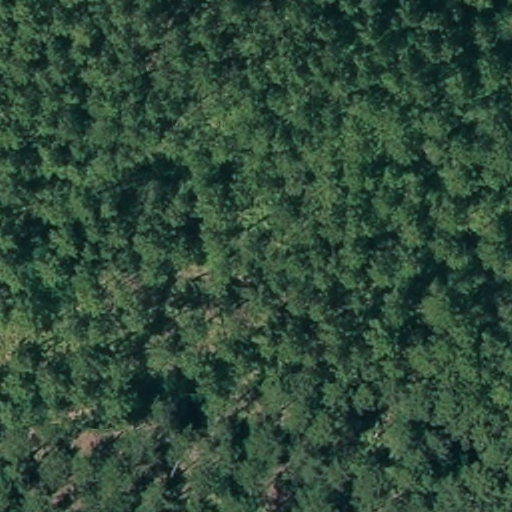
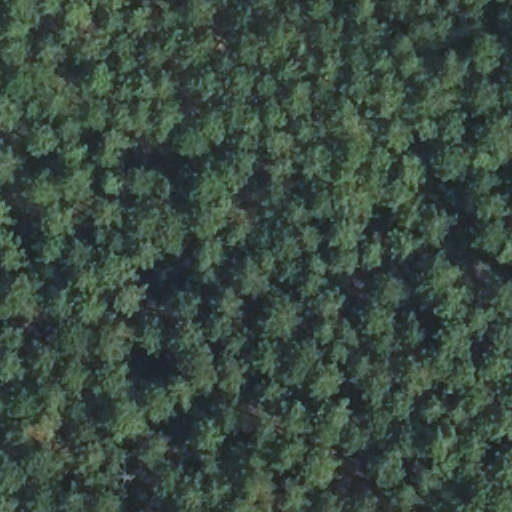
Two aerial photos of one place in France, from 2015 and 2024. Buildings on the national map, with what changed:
[]

